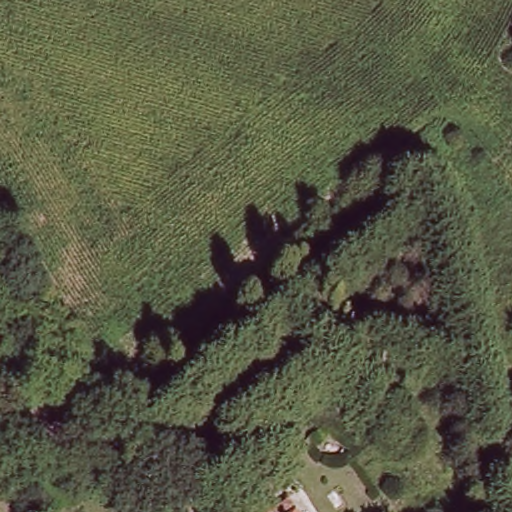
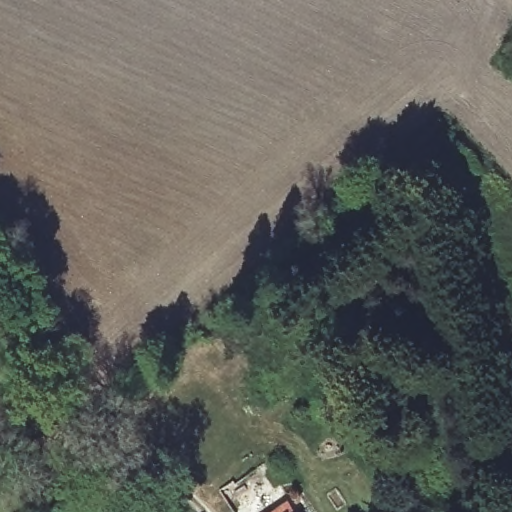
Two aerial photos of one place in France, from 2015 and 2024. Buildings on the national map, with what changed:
unchanged [(293,512),(273,512),(287,503),(293,512)]

